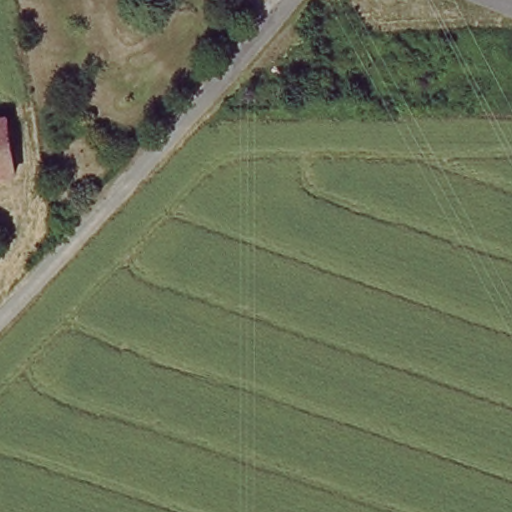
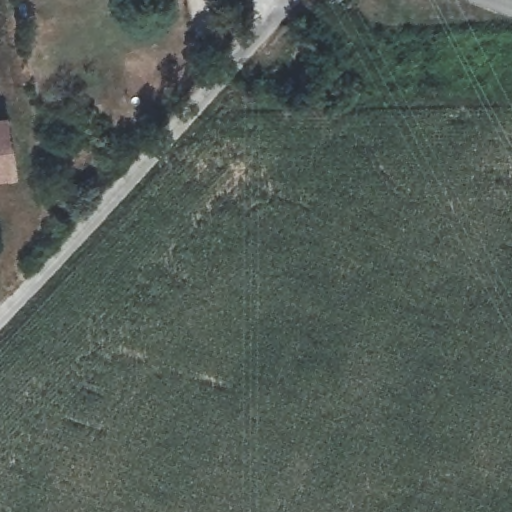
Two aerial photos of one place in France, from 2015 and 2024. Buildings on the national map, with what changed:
unchanged [(0,176),(0,114),(6,114),(14,174),(0,176)]

